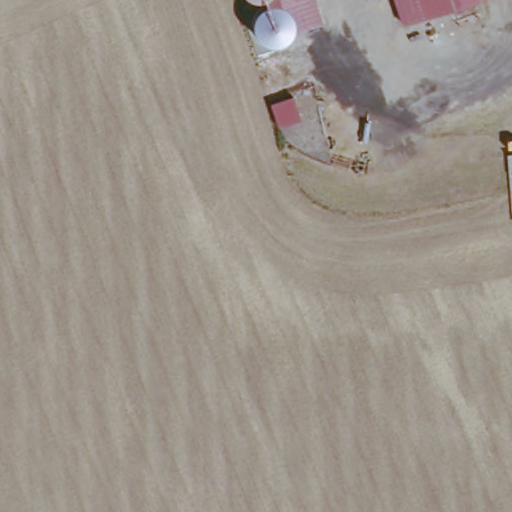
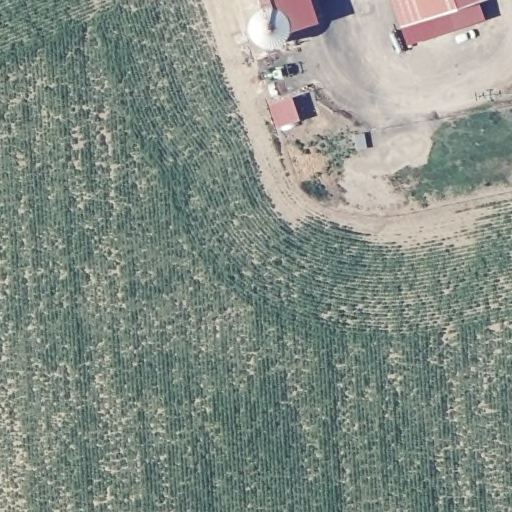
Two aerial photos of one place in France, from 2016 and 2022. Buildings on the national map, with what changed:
unchanged [(270,8),(276,8),(282,10),(287,13),(291,16),(293,20),(296,29),(295,34),(288,42),(280,48),(272,48),(265,46),(260,41),(255,33),(245,0),(271,0),(268,4),(270,8)]
unchanged [(296,29),(293,20),(291,16),(287,13),(282,10),(276,8),(270,8),(268,4),(271,0),(316,0),(322,20),(296,29)]
unchanged [(396,0),(484,0),(405,26),(396,0)]

